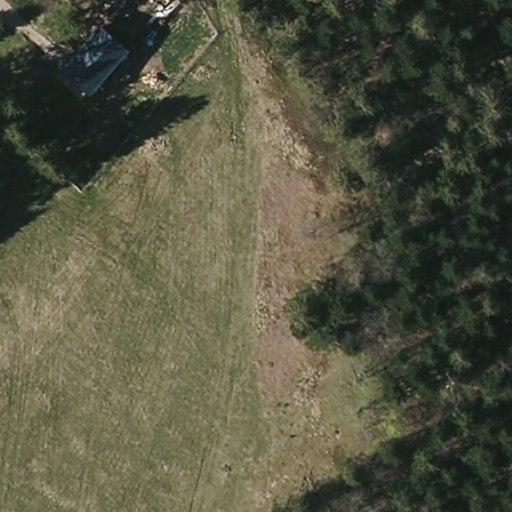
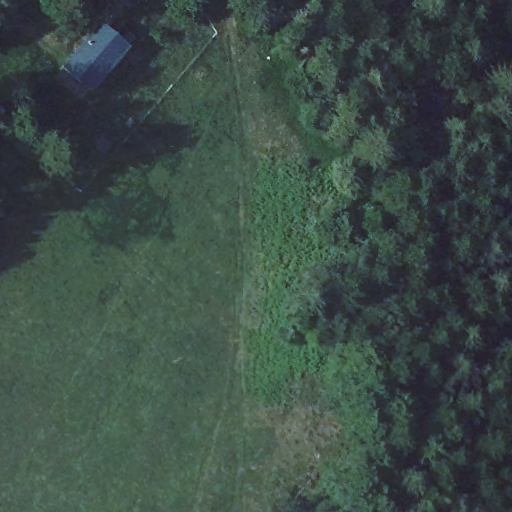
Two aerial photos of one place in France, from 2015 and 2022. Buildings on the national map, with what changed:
unchanged [(129,56),(102,98),(63,78),(86,36),(129,56)]

